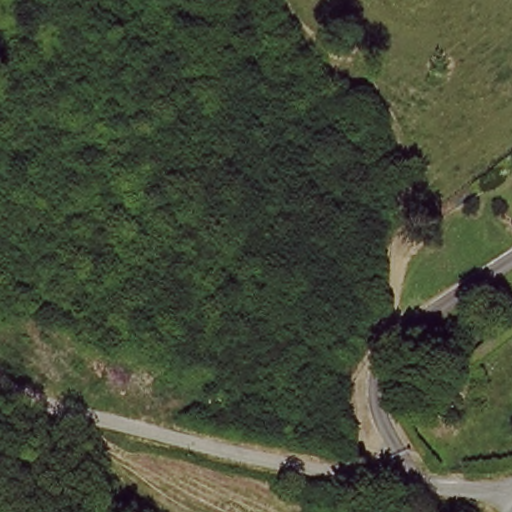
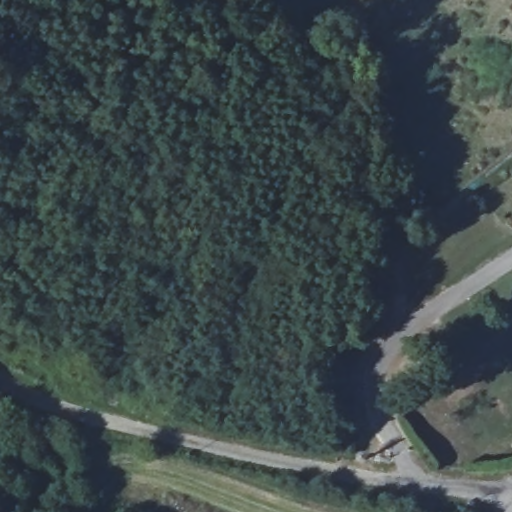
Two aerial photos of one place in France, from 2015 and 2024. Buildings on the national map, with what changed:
[]

